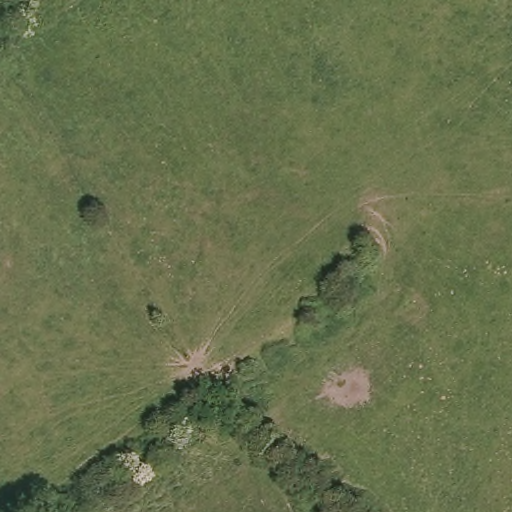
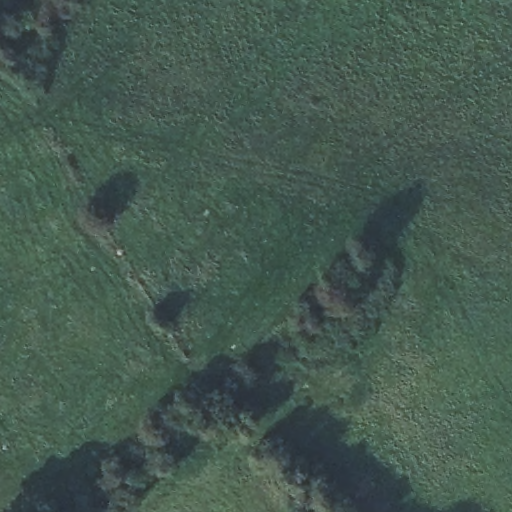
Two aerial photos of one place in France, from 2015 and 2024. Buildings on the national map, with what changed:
[]

